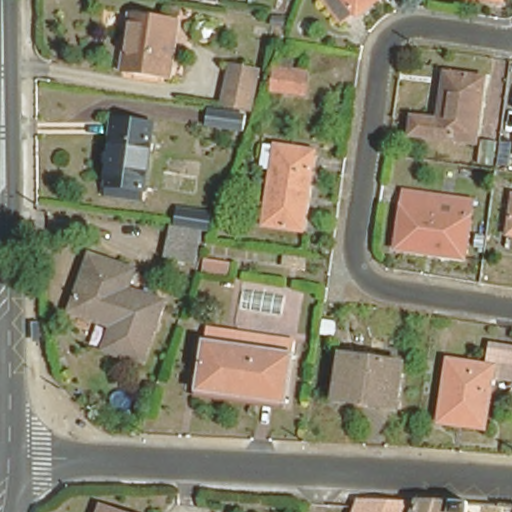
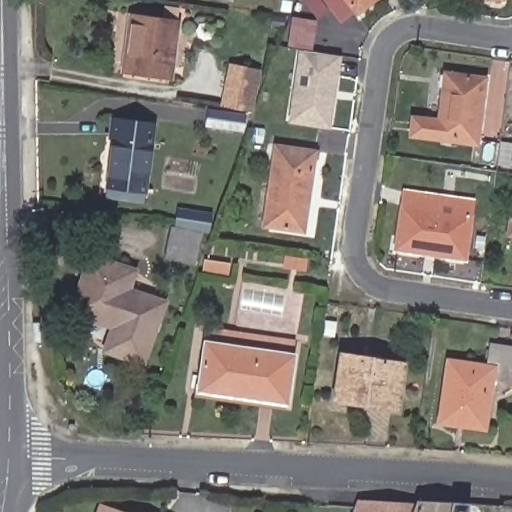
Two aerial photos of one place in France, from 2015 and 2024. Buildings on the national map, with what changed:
unchanged [(354,15),(340,28),(318,0),(377,0),(355,18),(354,15)]
unchanged [(158,21),(159,11),(174,13),(165,83),(117,76),(124,17),(158,21)]
new [(330,130),(291,124),(298,50),(286,48),(291,17),(316,21),(312,52),(340,56),(330,130)]
demolished [(305,96),(270,91),(275,59),(292,61),(291,68),(309,70),(305,96)]
unchanged [(220,103),(226,61),(252,65),(245,107),(220,103)]
unchanged [(483,84),(480,108),(475,148),(411,140),(413,121),(439,125),(445,79),(483,84)]
unchanged [(240,110),(238,126),(201,120),(203,104),(240,110)]
unchanged [(104,196),(105,187),(111,141),(106,140),(110,118),(152,124),(144,193),(142,201),(104,196)]
unchanged [(316,151),(303,232),(265,227),(272,169),(260,167),(264,144),(316,151)]
unchanged [(470,200),(462,257),(397,248),(405,192),(470,200)]
unchanged [(177,207),(211,212),(209,231),(199,230),(195,259),(166,255),(171,226),(175,226),(177,207)]
unchanged [(512,214),(512,238),(508,238),(512,214)]
unchanged [(305,270),(282,268),(284,254),(307,258),(305,270)]
unchanged [(133,270),(127,288),(162,299),(140,360),(105,348),(114,324),(71,310),(90,256),(133,270)]
unchanged [(230,261),(227,275),(202,272),(204,258),(230,261)]
unchanged [(336,322),(333,338),(319,335),(318,335),(321,319),(336,322)]
unchanged [(288,346),(280,409),(195,397),(204,334),(288,346)]
unchanged [(436,422),(444,361),(485,366),(487,345),(512,348),(512,375),(511,382),(483,379),(478,417),(476,428),(451,424),(436,422)]
unchanged [(401,363),(395,409),(336,400),(343,354),(401,363)]
unchanged [(353,503),(410,507),(411,499),(446,502),(464,503),(464,512),(349,512),(351,506),(353,503)]
unchanged [(511,506),(512,506),(512,512),(510,512),(511,506)]
unchanged [(102,507),(118,512),(101,512),(102,507)]

